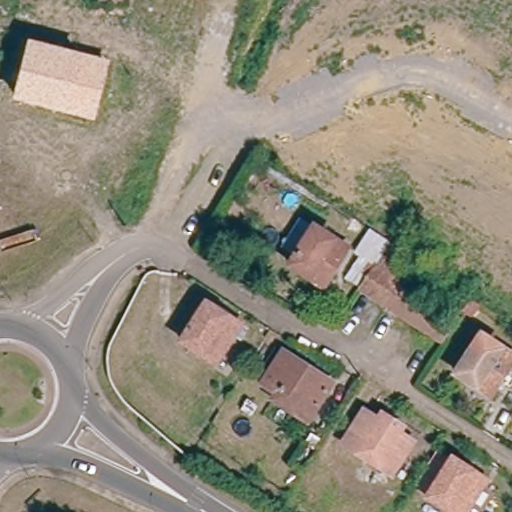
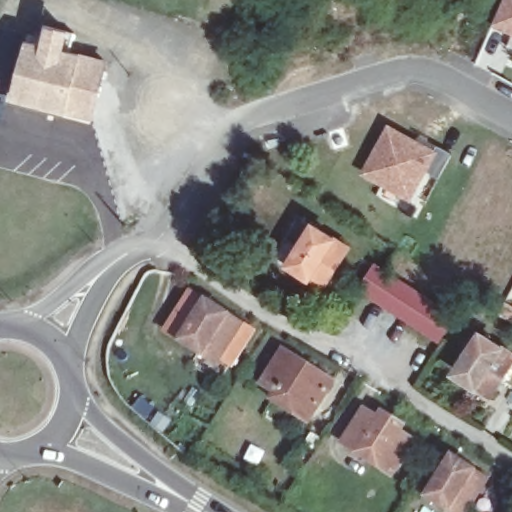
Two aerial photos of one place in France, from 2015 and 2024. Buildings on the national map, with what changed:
new [(512,33),(487,22),(496,0),(512,0),(512,33)]
unchanged [(105,62),(91,116),(16,97),(29,43),(105,62)]
new [(412,142),(416,135),(449,154),(437,177),(422,170),(407,197),(362,173),(387,127),(412,142)]
unchanged [(365,231),(325,205),(328,199),(368,226),(365,231)]
unchanged [(382,266),(367,289),(357,282),(353,281),(375,246),(368,242),(376,231),(383,235),(390,224),(408,236),(402,247),(410,252),(396,275),(382,266)]
unchanged [(310,277),(287,262),(310,226),(345,247),(323,280),(321,285),(310,277)]
unchanged [(447,341),(367,289),(382,266),(396,275),(462,317),(447,341)]
unchanged [(200,355),(177,341),(202,303),(236,325),(214,358),(212,362),(200,355)]
unchanged [(486,395),(475,387),(453,373),(477,334),(510,355),(490,390),(487,394),(486,395)]
unchanged [(327,382),(302,422),(268,400),(272,393),(258,385),(279,352),(327,382)]
unchanged [(373,419),(377,412),(400,426),(396,432),(409,441),(387,475),(337,443),(358,410),(373,419)]
unchanged [(429,495),(431,493),(418,485),(440,450),(452,458),(453,457),(487,478),(467,511),(466,512),(457,512),(448,507),(429,495)]
unchanged [(394,492),(388,502),(375,493),(381,484),(394,492)]

